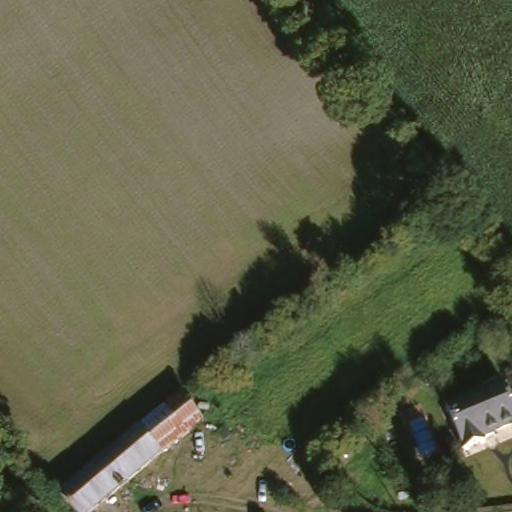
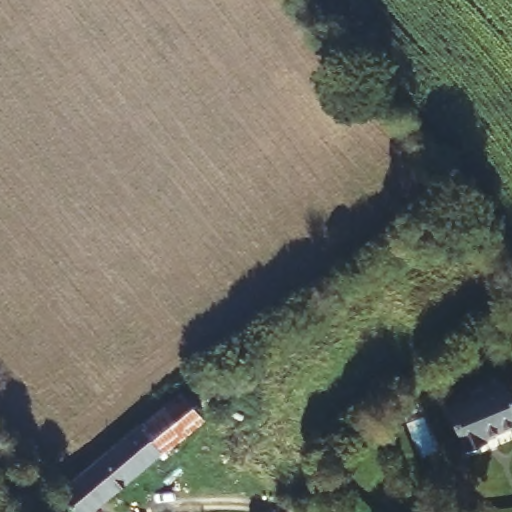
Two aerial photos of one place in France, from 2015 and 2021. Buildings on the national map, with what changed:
unchanged [(494,382),(512,420),(512,422),(477,439),(480,445),(461,454),(439,408),(494,382)]
unchanged [(51,489),(142,424),(168,406),(181,396),(204,424),(191,434),(82,512),(72,512),(51,489)]

